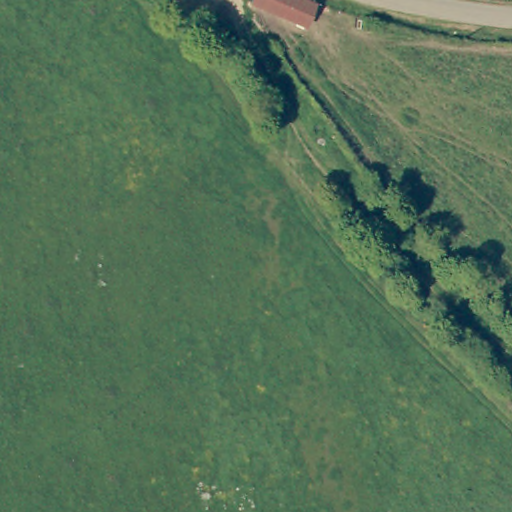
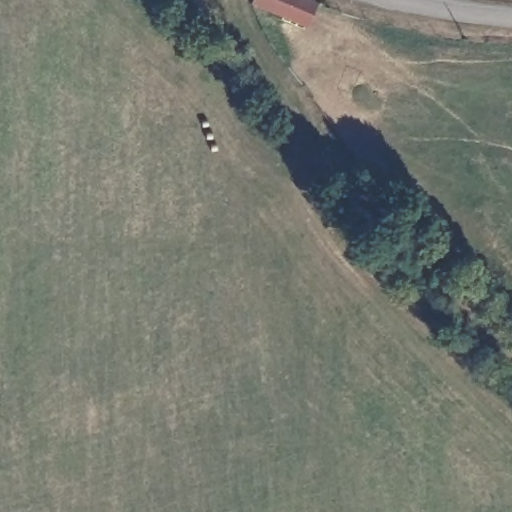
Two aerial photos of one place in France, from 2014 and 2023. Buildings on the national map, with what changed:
unchanged [(251,0),(308,0),(316,4),(305,28),(249,4),(251,0)]

